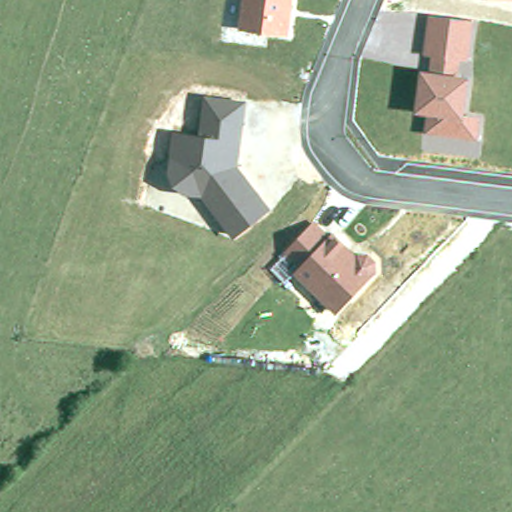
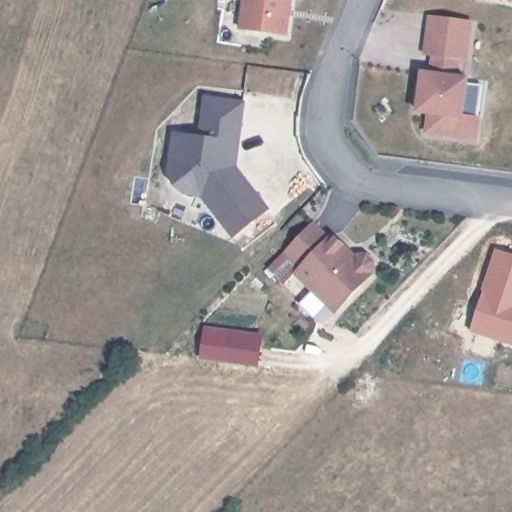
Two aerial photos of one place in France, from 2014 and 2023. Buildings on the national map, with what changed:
unchanged [(290,35),(239,30),(242,0),(293,0),(290,35)]
unchanged [(470,62),(460,61),(457,75),(471,78),(467,113),(482,117),(479,141),(425,134),(428,115),(417,114),(421,70),(429,71),(431,57),(423,56),(427,16),(475,21),(470,62)]
unchanged [(203,197),(184,195),(168,176),(173,135),(199,138),(204,96),(246,101),(238,165),(272,208),(234,238),(203,197)]
unchanged [(329,236),(333,233),(357,254),(371,253),(378,260),(377,274),(336,315),(293,274),(300,268),(284,252),(314,221),(329,236)]
new [(470,332),(484,290),(482,290),(496,249),(512,254),(512,345),(470,332)]
new [(205,326),(235,330),(231,363),(200,359),(205,326)]

